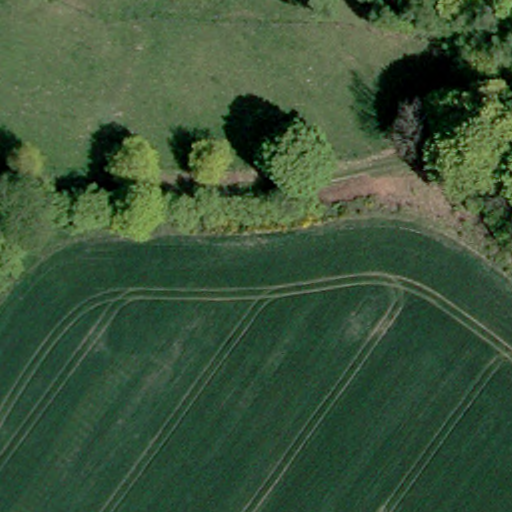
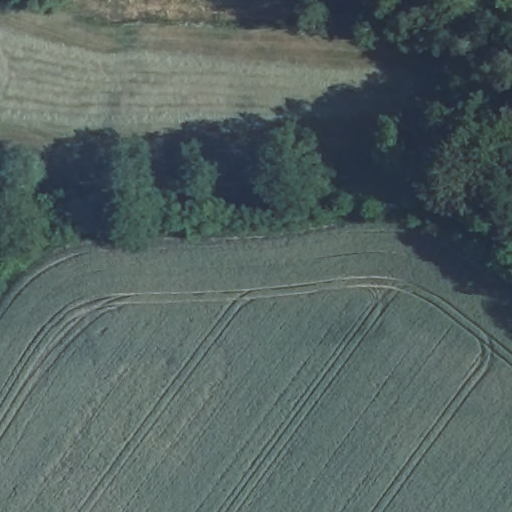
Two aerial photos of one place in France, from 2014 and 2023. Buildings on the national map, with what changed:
[]

